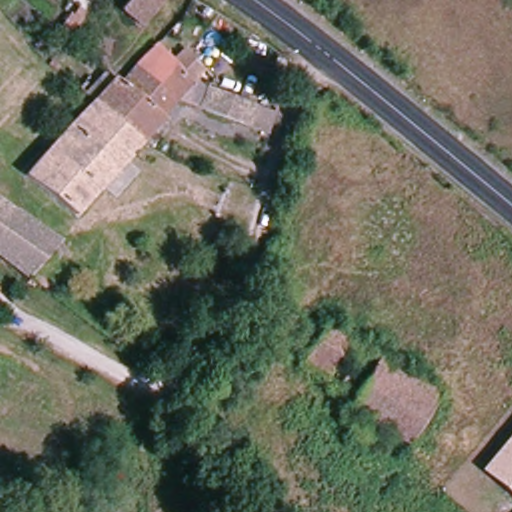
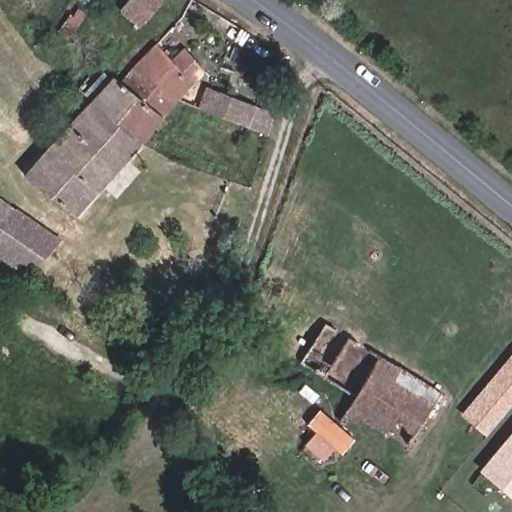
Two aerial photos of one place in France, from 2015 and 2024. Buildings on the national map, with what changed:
unchanged [(120,9),(127,0),(160,0),(139,26),(120,9)]
unchanged [(195,82),(180,99),(176,96),(142,69),(160,49),(195,82)]
unchanged [(98,105),(85,91),(95,80),(110,91),(119,83),(124,89),(142,69),(176,96),(180,99),(142,142),(98,105)]
unchanged [(197,107),(206,89),(251,107),(245,128),(197,107)]
unchanged [(79,214),(34,177),(98,105),(142,142),(79,214)]
unchanged [(0,198),(13,208),(18,211),(58,241),(30,274),(0,252),(0,237),(0,198)]
new [(512,355),(512,407),(487,436),(462,415),(512,355)]
unchanged [(409,446),(346,411),(355,398),(381,356),(441,391),(409,446)]
new [(308,425),(322,410),(356,440),(343,455),(335,448),(323,462),(305,446),(317,432),(308,425)]
unchanged [(480,470),(512,432),(512,496),(480,470)]

